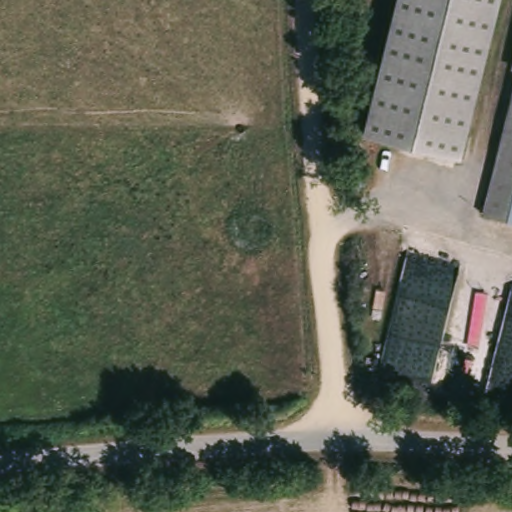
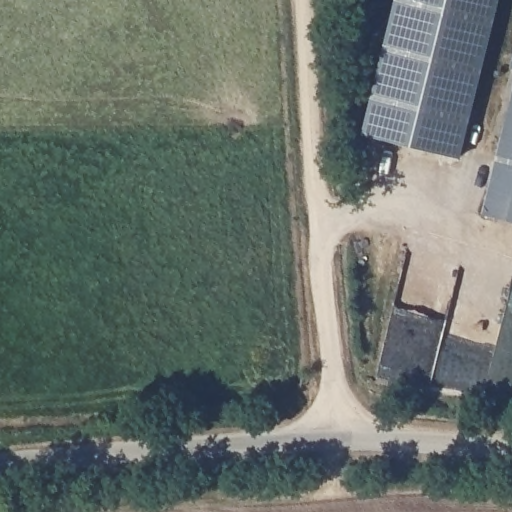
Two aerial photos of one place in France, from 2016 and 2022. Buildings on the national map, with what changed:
unchanged [(458,156),(362,131),(395,0),(497,0),(458,156)]
unchanged [(512,61),(512,65),(511,65),(512,61)]
unchanged [(512,92),(512,219),(482,212),(512,92)]

